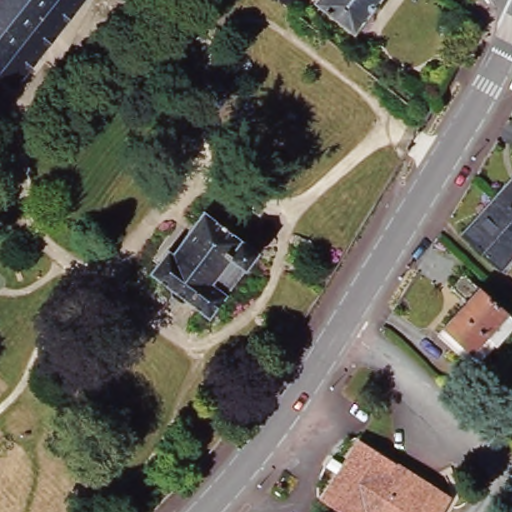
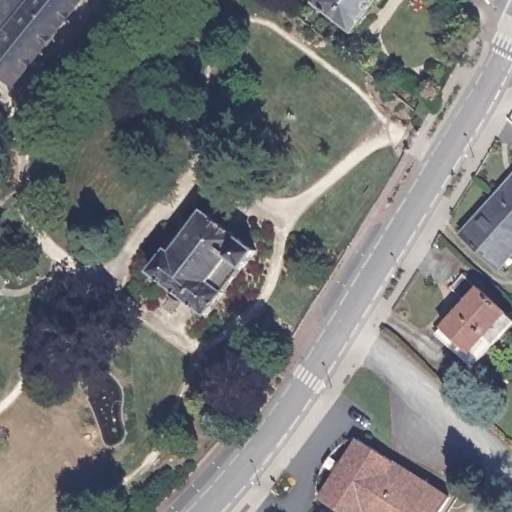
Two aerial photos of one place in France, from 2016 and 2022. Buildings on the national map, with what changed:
unchanged [(0,68),(0,0),(87,0),(20,84),(0,68)]
unchanged [(318,4),(321,0),(384,0),(358,34),(318,4)]
unchanged [(501,190),(512,177),(512,200),(501,190)]
unchanged [(505,265),(466,230),(501,190),(512,200),(512,257),(505,265)]
unchanged [(207,209),(261,252),(249,268),(246,266),(236,279),(227,292),(230,293),(212,315),(192,300),(191,302),(182,301),(175,295),(174,289),(175,287),(154,270),(171,249),(175,252),(207,209)]
unchanged [(472,356),(435,322),(463,290),(448,275),(461,263),(512,309),(512,313),(472,356)]
unchanged [(450,498),(441,512),(343,512),(323,499),(340,473),(328,465),(335,456),(345,463),(361,439),(450,498)]

